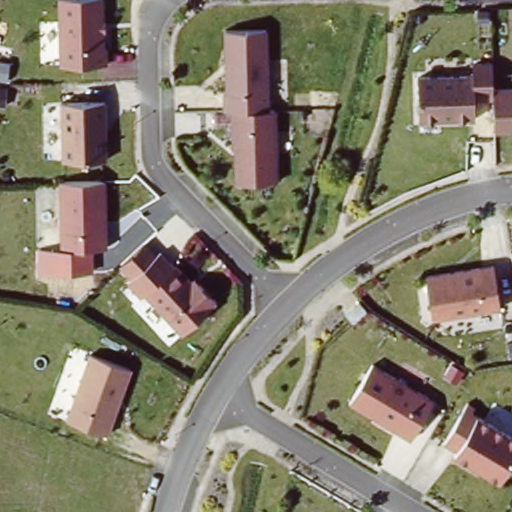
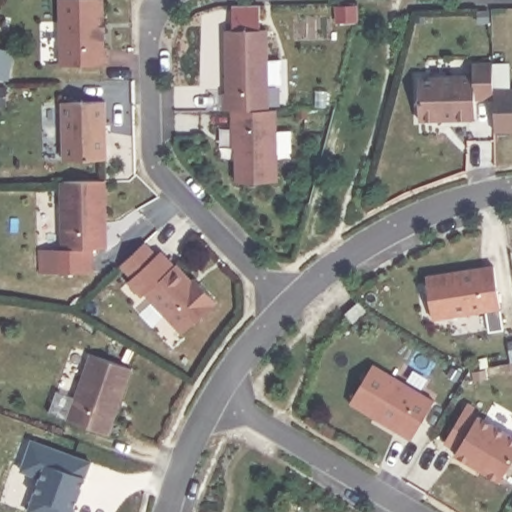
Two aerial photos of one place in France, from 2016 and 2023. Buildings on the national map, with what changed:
unchanged [(60,64),(58,0),(104,0),(106,62),(60,64)]
unchanged [(223,30),(268,29),(270,109),(277,109),(278,179),(236,180),(235,148),(231,148),(230,109),(222,110),(221,90),(225,90),(223,30)]
unchanged [(492,61),(493,87),(512,87),(512,132),(495,132),(494,99),(475,100),(475,120),(417,121),(416,75),(472,73),(471,61),(492,61)]
unchanged [(107,100),(107,157),(62,159),(60,101),(107,100)]
unchanged [(106,179),(107,246),(61,247),(59,180),(106,179)]
unchanged [(156,253),(160,249),(175,264),(177,262),(192,278),(193,275),(216,300),(180,332),(149,299),(144,293),(140,297),(126,282),(132,277),(119,265),(145,241),(156,253)]
unchanged [(494,265),(499,308),(432,318),(425,275),(494,265)]
unchanged [(132,368),(109,433),(65,418),(90,352),(132,368)]
unchanged [(435,398),(410,440),(348,403),(373,362),(435,398)]
unchanged [(480,415),(512,432),(512,461),(500,481),(455,456),(453,455),(456,449),(443,442),(467,401),(485,408),(480,415)]
new [(85,476),(73,507),(75,508),(74,512),(31,512),(27,510),(36,477),(19,472),(30,438),(91,460),(85,476)]

